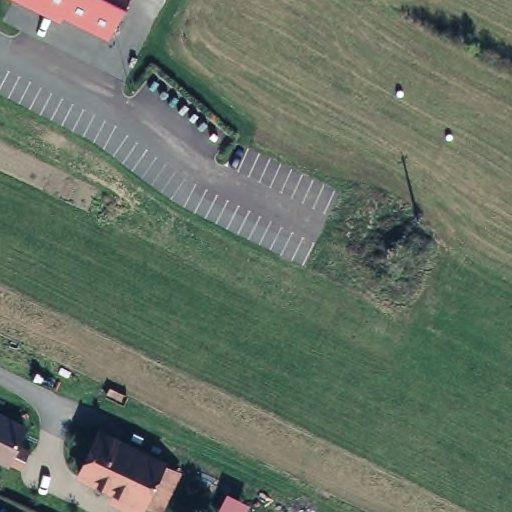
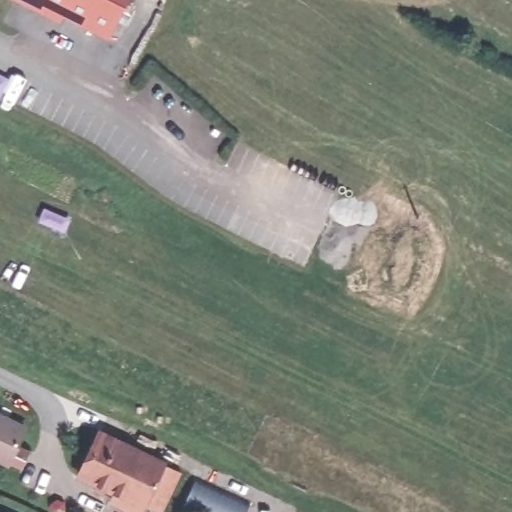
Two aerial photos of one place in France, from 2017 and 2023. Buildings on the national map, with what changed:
unchanged [(62,17),(60,22),(14,0),(126,0),(107,40),(62,17)]
unchanged [(18,445),(0,436),(0,411),(29,424),(18,445)]
unchanged [(154,509),(138,502),(137,505),(73,475),(95,431),(158,462),(157,465),(172,472),(154,509)]
unchanged [(10,461),(0,456),(0,436),(18,445),(10,461)]

